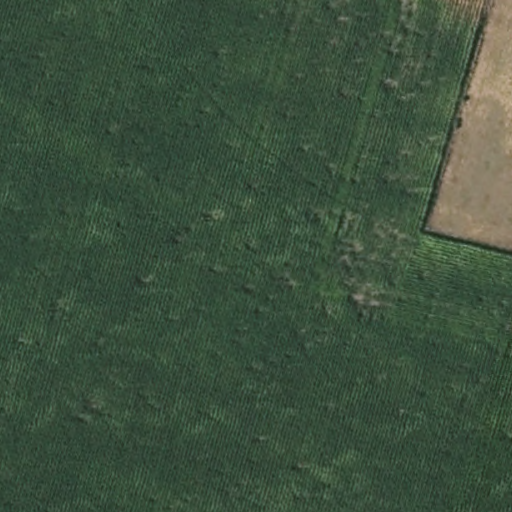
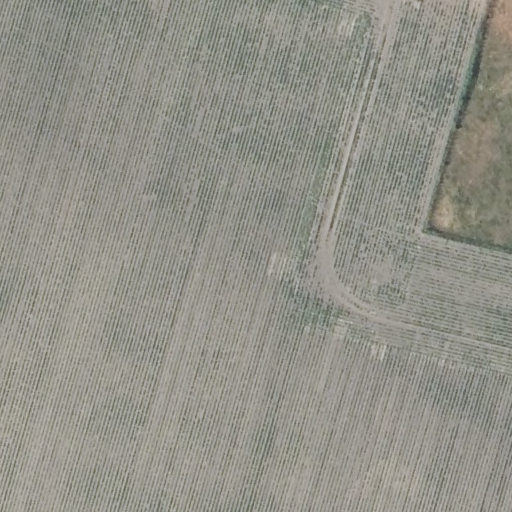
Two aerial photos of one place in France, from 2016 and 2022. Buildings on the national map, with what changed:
[]

